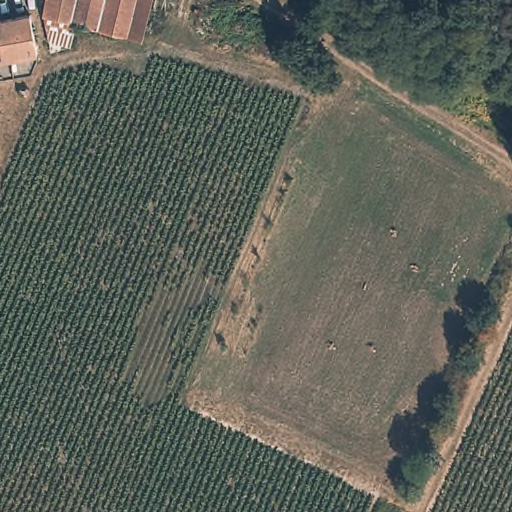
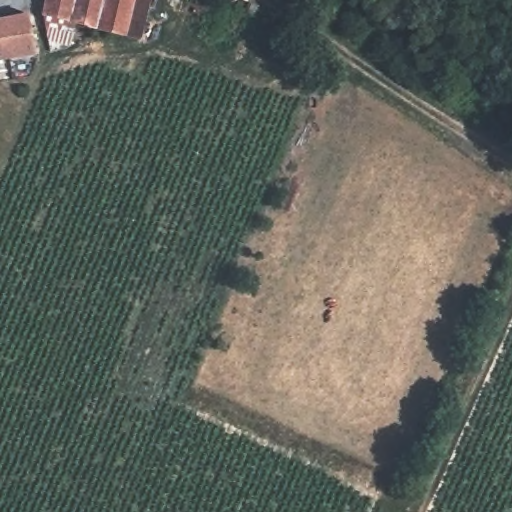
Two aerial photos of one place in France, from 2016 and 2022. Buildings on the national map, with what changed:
unchanged [(136,40),(134,40),(48,15),(49,6),(49,0),(160,0),(151,44),(136,40)]
unchanged [(34,56),(3,61),(0,40),(0,20),(29,15),(34,56)]
unchanged [(0,62),(0,40),(3,61),(0,62)]

